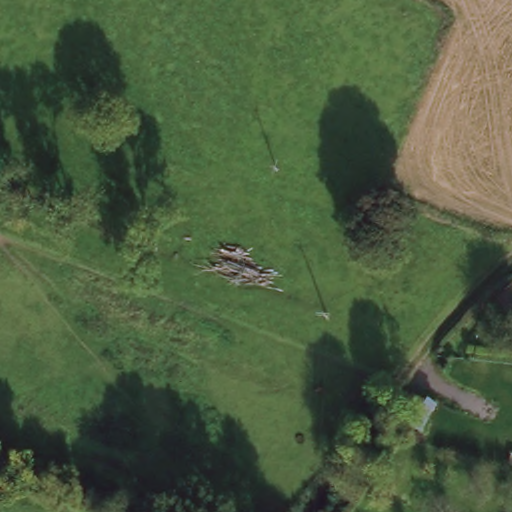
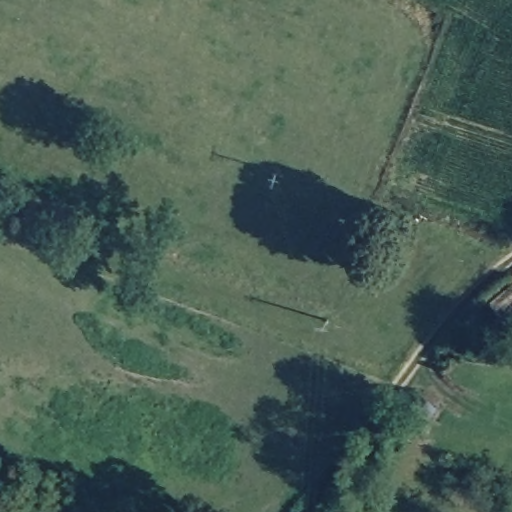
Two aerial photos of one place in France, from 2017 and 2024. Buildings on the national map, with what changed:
unchanged [(512,452),(512,466),(507,466),(510,452),(512,452)]

